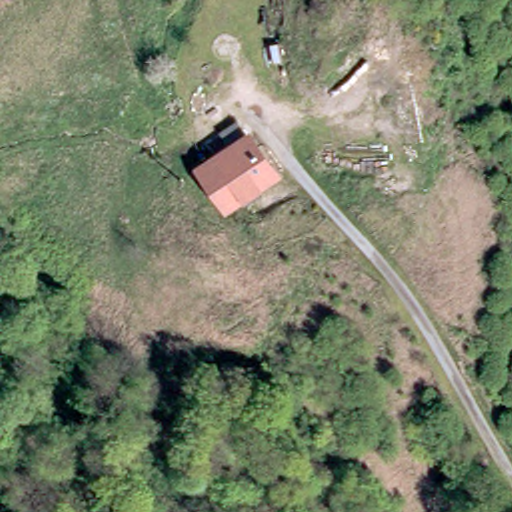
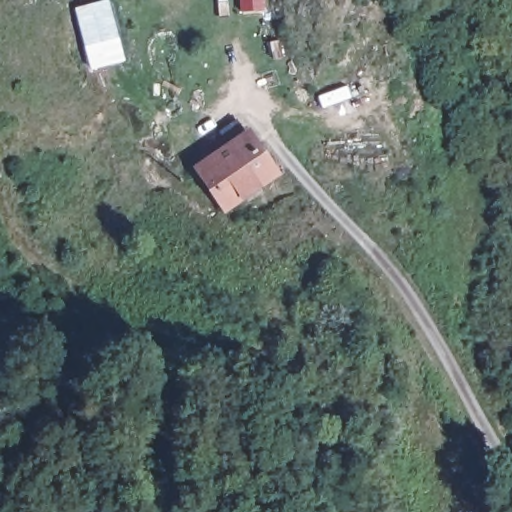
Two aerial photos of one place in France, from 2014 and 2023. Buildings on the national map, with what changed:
new [(110,1),(122,63),(92,69),(80,7),(110,1)]
unchanged [(278,172),(225,203),(198,160),(253,130),(278,172)]

